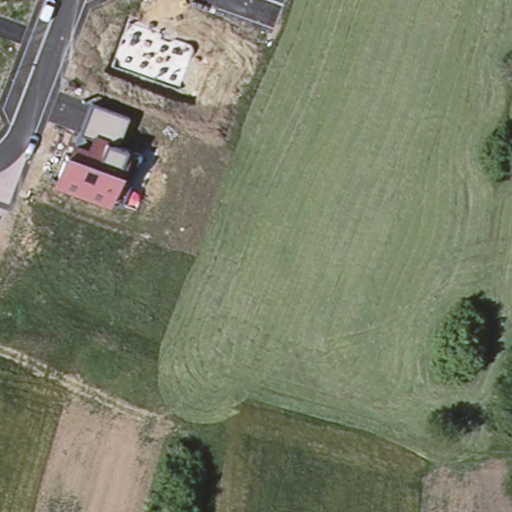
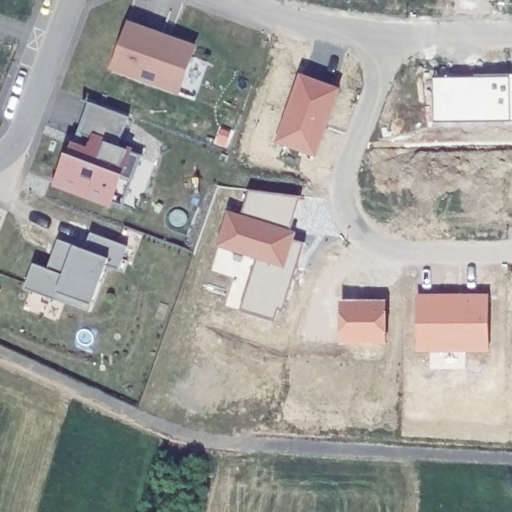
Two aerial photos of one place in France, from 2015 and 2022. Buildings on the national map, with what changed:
unchanged [(112,66),(130,21),(162,34),(162,39),(171,41),(176,40),(195,47),(181,90),(112,66)]
new [(339,90),(315,158),(277,145),(297,74),(339,90)]
new [(512,75),(512,121),(433,123),(433,80),(512,75)]
unchanged [(56,184),(75,140),(89,145),(94,133),(82,130),(90,102),(130,119),(119,144),(130,148),(141,154),(129,181),(123,175),(111,206),(56,184)]
new [(299,196),(289,228),(296,230),(292,243),(302,245),(281,310),(276,308),(272,321),(240,312),(255,261),(217,246),(227,211),(242,216),(248,191),(299,196)]
new [(55,296),(23,285),(32,260),(47,265),(57,236),(84,245),(90,229),(127,242),(117,266),(105,261),(91,301),(87,308),(55,296)]
new [(489,296),(491,354),(416,354),(414,296),(489,296)]
new [(385,301),(386,344),(340,344),(340,302),(385,301)]

